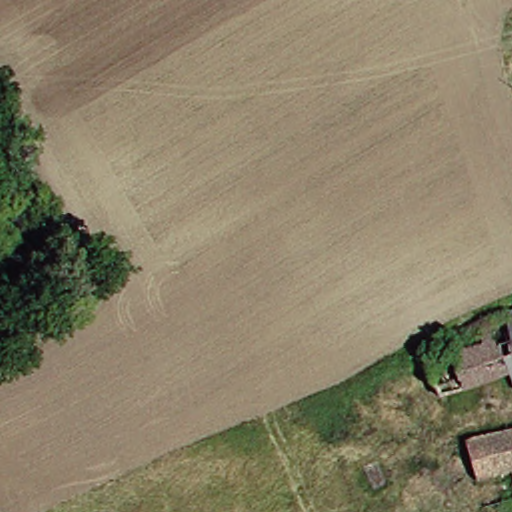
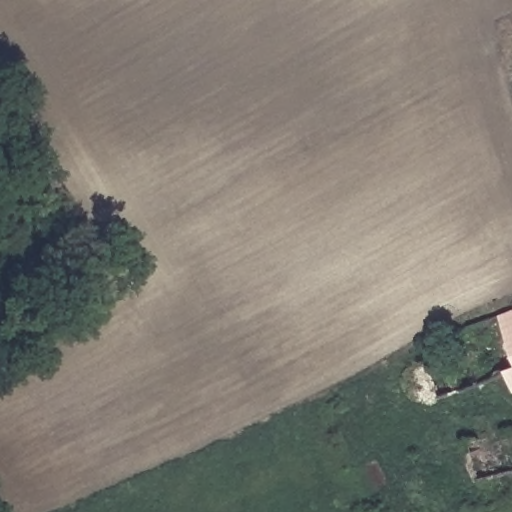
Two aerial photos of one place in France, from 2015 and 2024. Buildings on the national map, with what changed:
unchanged [(462,353),(453,332),(512,311),(512,381),(477,392),(451,402),(439,366),(462,353)]
unchanged [(499,483),(492,486),(477,450),(512,438),(512,497),(503,499),(499,483)]

